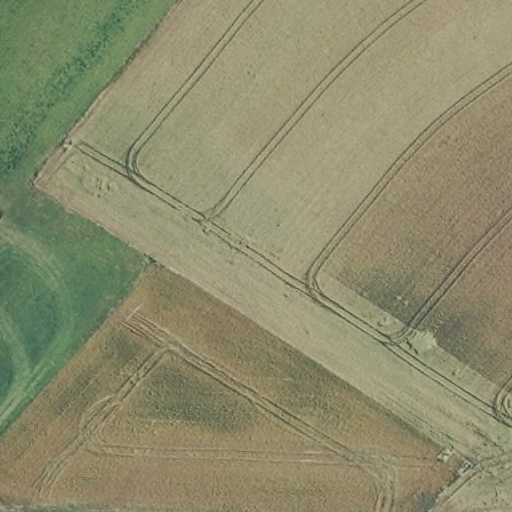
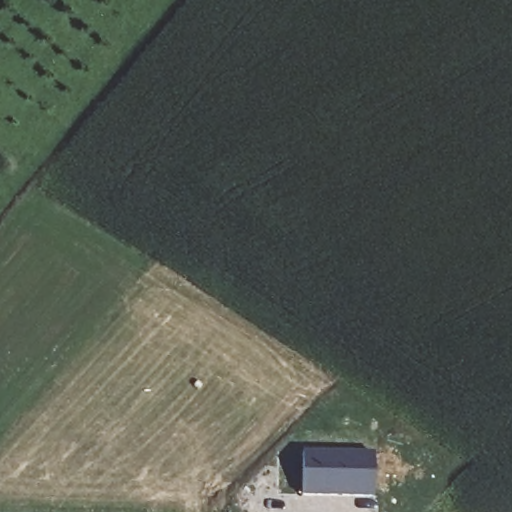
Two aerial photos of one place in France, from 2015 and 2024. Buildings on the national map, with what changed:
new [(302,451),(373,454),(373,498),(302,497),(302,451)]

